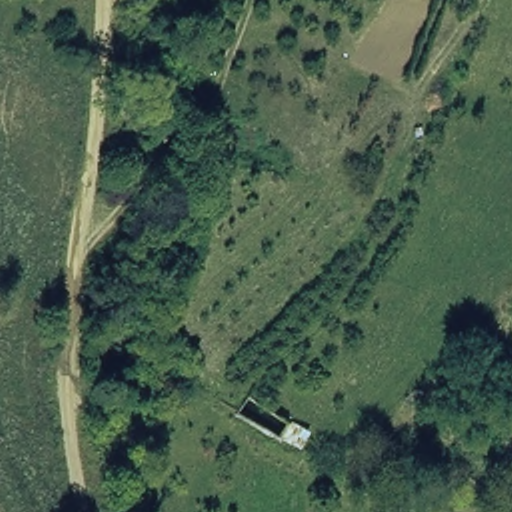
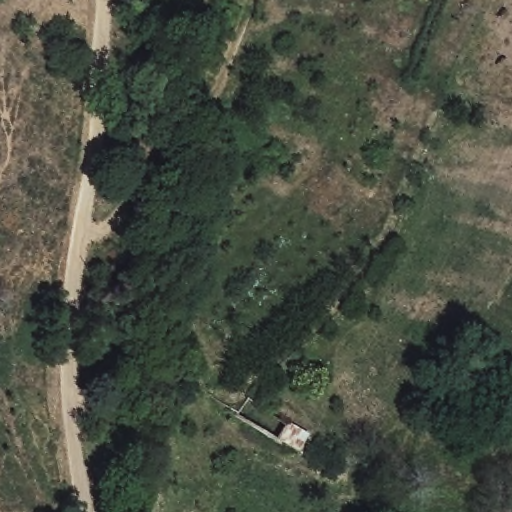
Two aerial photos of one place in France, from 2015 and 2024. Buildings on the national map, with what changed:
unchanged [(303,448),(278,438),(234,412),(248,394),(286,420),(310,431),(303,448)]

